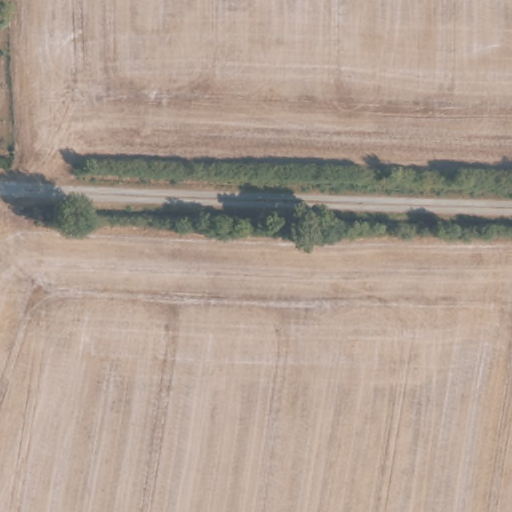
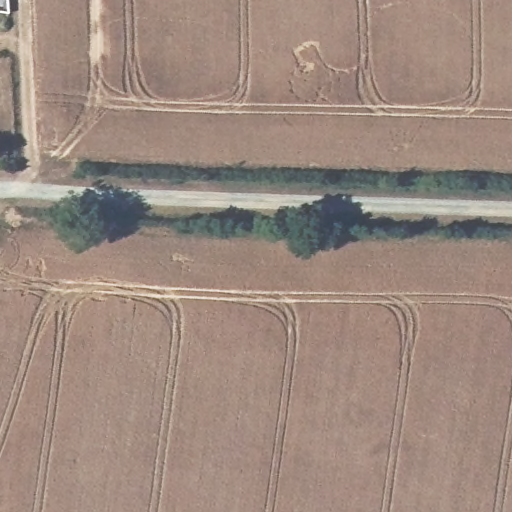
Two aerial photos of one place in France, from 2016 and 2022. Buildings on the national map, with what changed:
[]

